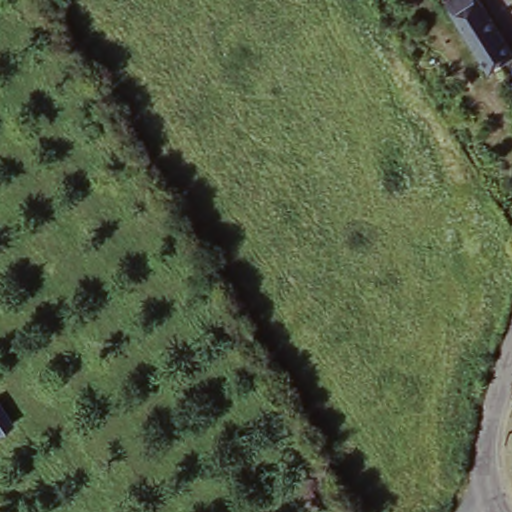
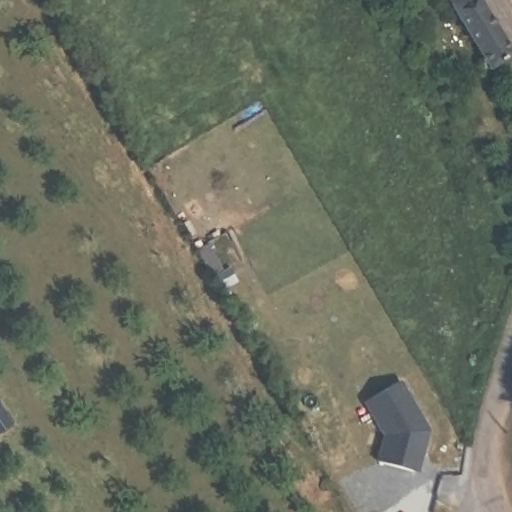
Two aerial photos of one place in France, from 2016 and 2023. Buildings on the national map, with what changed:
unchanged [(508,72),(497,79),(442,0),(455,0),(456,1),(458,0),(466,0),(477,9),(512,54),(512,69),(508,72)]
new [(401,384),(430,433),(419,474),(377,464),(384,438),(365,404),(401,384)]
unchanged [(0,456),(0,427),(14,448),(0,456)]

